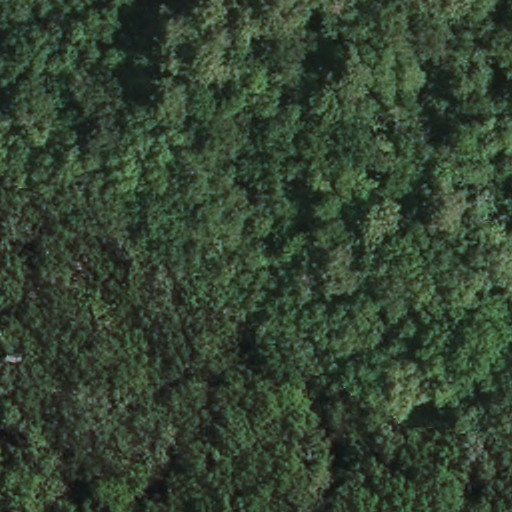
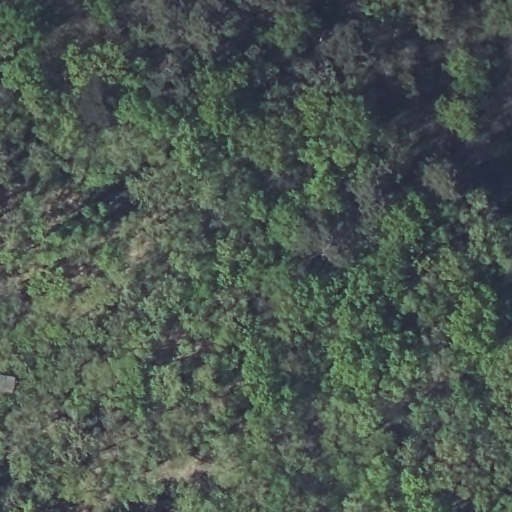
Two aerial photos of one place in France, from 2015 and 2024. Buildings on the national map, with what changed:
[]

